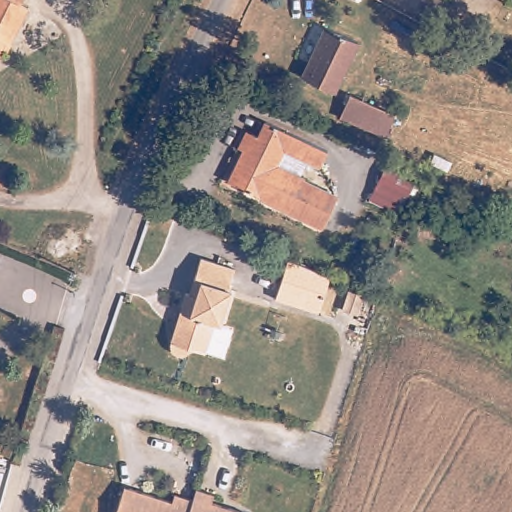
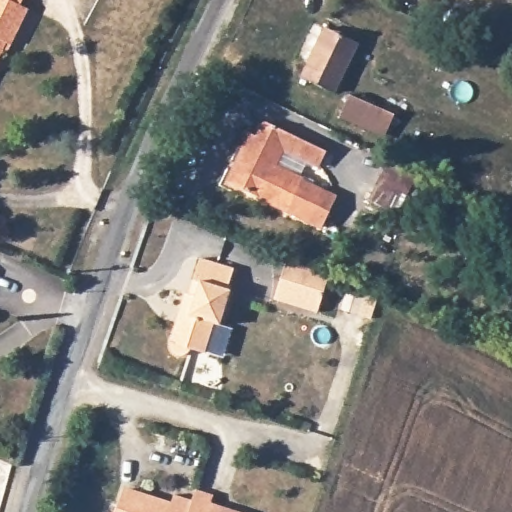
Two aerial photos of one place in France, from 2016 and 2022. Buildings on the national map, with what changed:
unchanged [(16,50),(12,49),(0,74),(0,0),(28,0),(25,8),(33,12),(16,50)]
unchanged [(311,56),(330,21),(363,41),(346,72),(335,92),(301,74),(311,56)]
unchanged [(354,126),(362,109),(407,130),(399,147),(354,126)]
unchanged [(229,180),(253,129),(261,132),(268,117),(328,146),(321,160),(287,144),(280,159),(306,172),(303,181),(340,197),(326,227),(229,180)]
unchanged [(403,211),(373,199),(392,159),(421,173),(403,211)]
unchanged [(239,267),(232,287),(236,288),(224,322),(218,320),(208,350),(194,345),(193,347),(192,348),(191,350),(189,351),(187,352),(186,352),(184,352),(182,352),(180,351),(178,350),(177,349),(176,347),(175,346),(174,345),(174,342),(174,338),(181,319),(185,317),(188,310),(186,305),(193,283),(196,285),(199,277),(206,256),(239,267)]
unchanged [(286,261),(331,272),(319,313),(273,301),(286,261)]
unchanged [(122,493),(130,489),(172,503),(175,496),(192,502),(189,512),(116,512),(122,493)]
unchanged [(192,502),(196,492),(214,497),(211,505),(231,512),(189,512),(192,502)]

